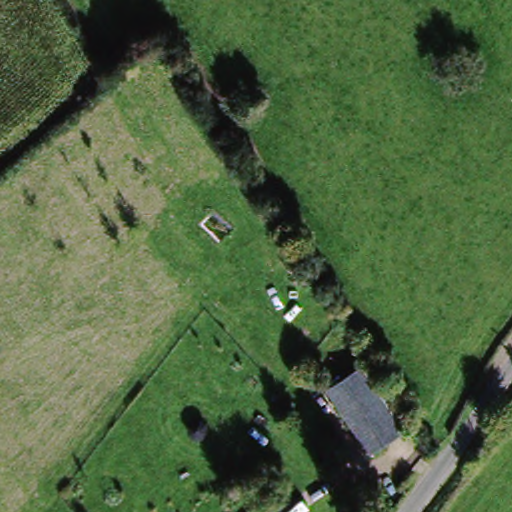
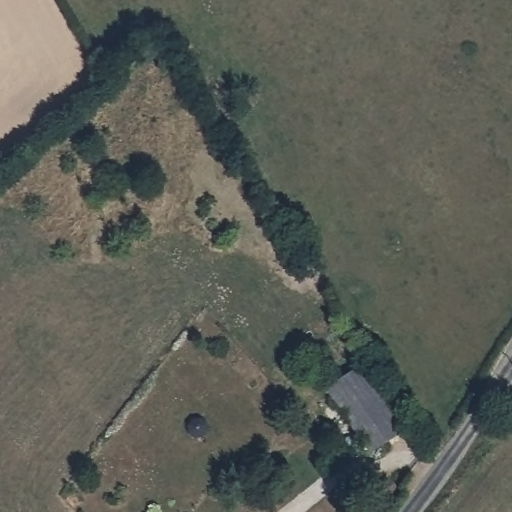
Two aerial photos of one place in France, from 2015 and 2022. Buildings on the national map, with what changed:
unchanged [(401,431),(369,454),(327,388),(359,366),(401,431)]

